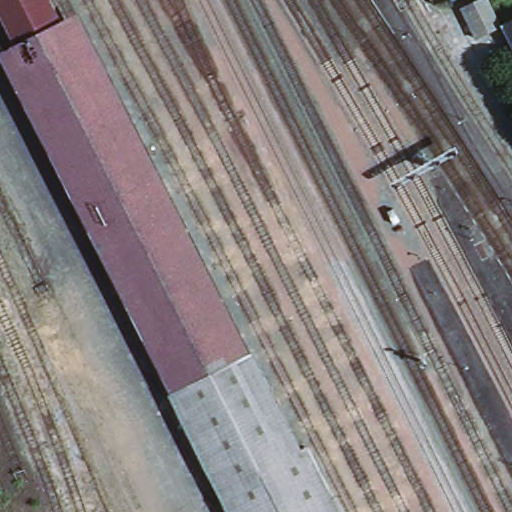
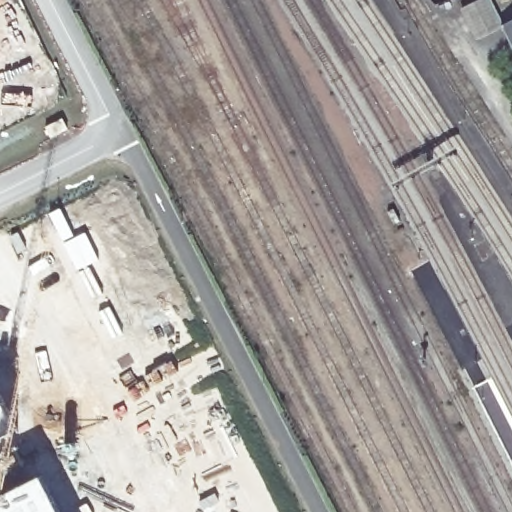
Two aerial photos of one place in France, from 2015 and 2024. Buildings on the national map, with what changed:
demolished [(49,8),(53,17),(44,22),(10,40),(0,20),(0,0),(45,0),(49,8)]
demolished [(125,97),(97,106),(78,66),(53,17),(49,8),(45,0),(76,0),(125,97)]
unchanged [(478,35),(462,5),(472,0),(491,0),(502,22),(512,17),(512,41),(502,22),(478,35)]
demolished [(97,106),(125,97),(335,512),(248,512),(37,94),(28,76),(10,40),(44,22),(53,17),(78,66),(97,106)]
new [(13,430),(0,438),(0,392),(13,430)]
new [(61,512),(0,512),(0,494),(41,473),(61,512)]

